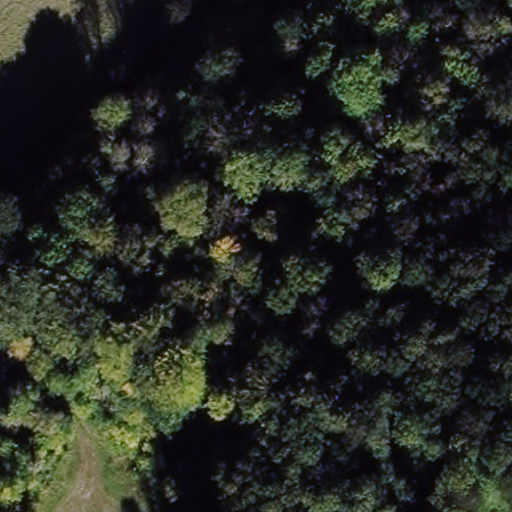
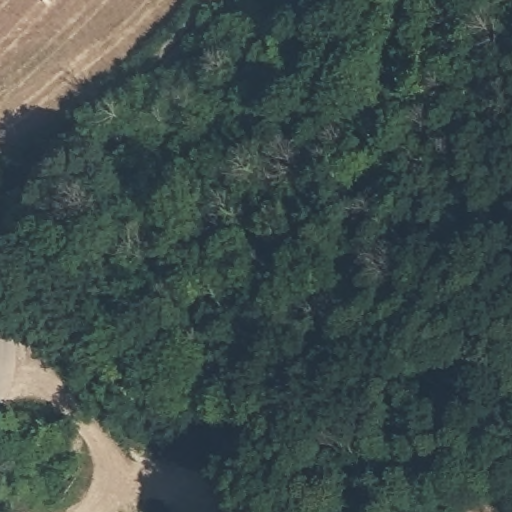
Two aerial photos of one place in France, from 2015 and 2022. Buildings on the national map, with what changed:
unchanged [(15,483),(20,474),(48,486),(45,497),(15,483)]

